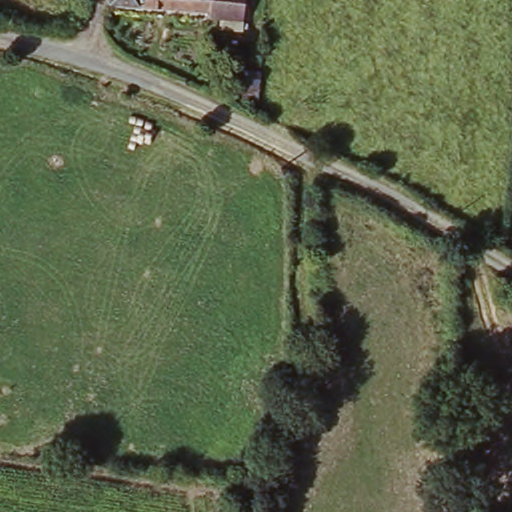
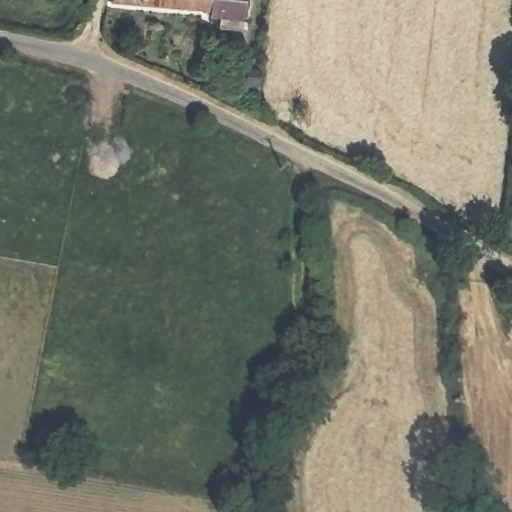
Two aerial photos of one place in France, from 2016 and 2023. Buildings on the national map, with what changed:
unchanged [(221,30),(222,21),(212,20),(212,16),(111,2),(111,0),(247,0),(245,34),(221,30)]
unchanged [(267,63),(268,90),(254,91),(253,82),(241,83),(241,64),(267,63)]

